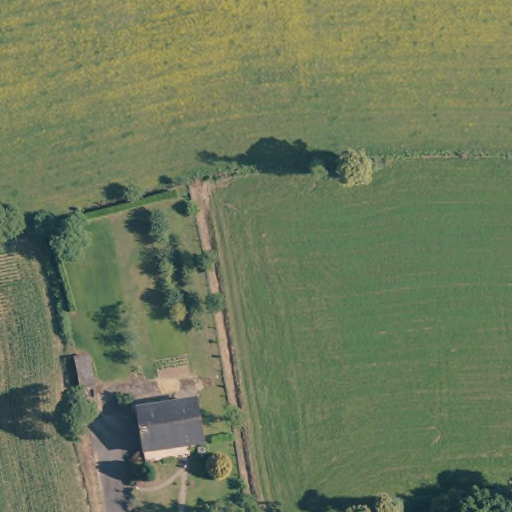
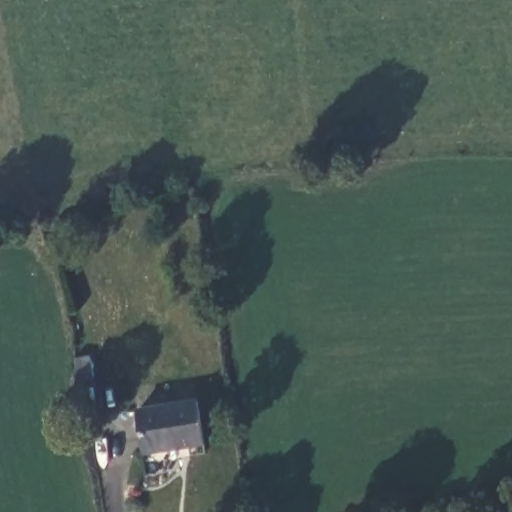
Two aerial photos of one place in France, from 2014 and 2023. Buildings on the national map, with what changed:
unchanged [(139,405),(197,393),(204,435),(146,447),(139,405)]

